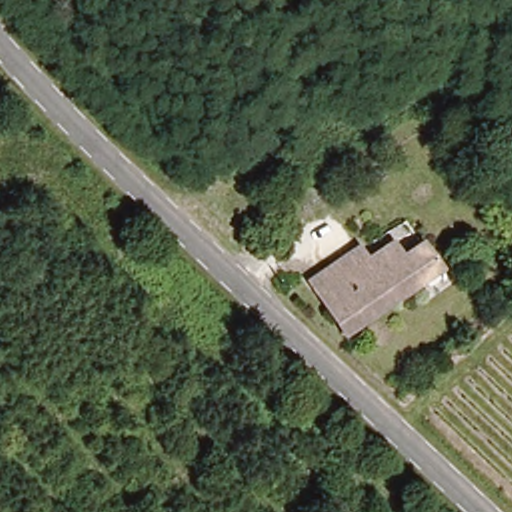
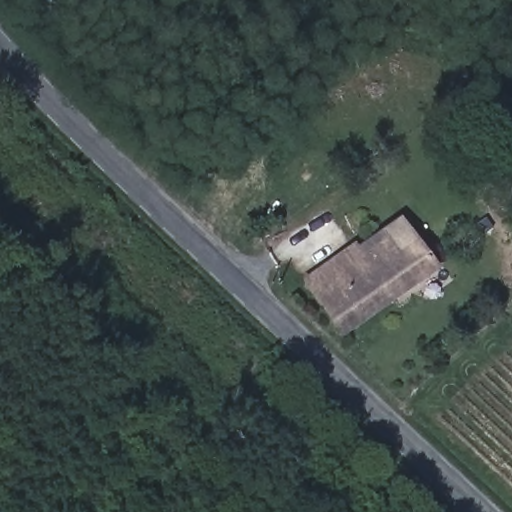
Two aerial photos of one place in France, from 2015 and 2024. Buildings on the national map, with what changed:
unchanged [(312,282),(360,252),(368,262),(392,244),(402,259),(422,245),(441,272),(347,335),(312,282)]

